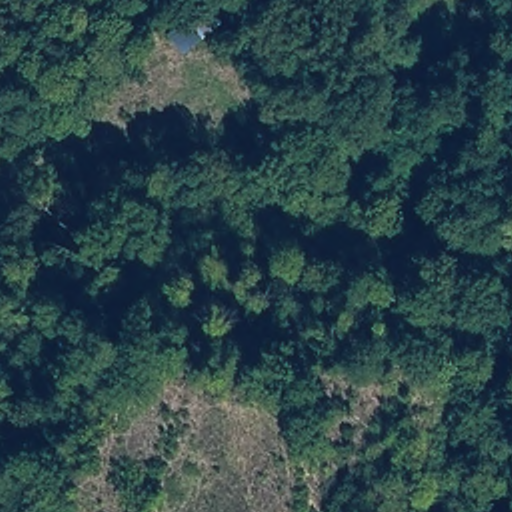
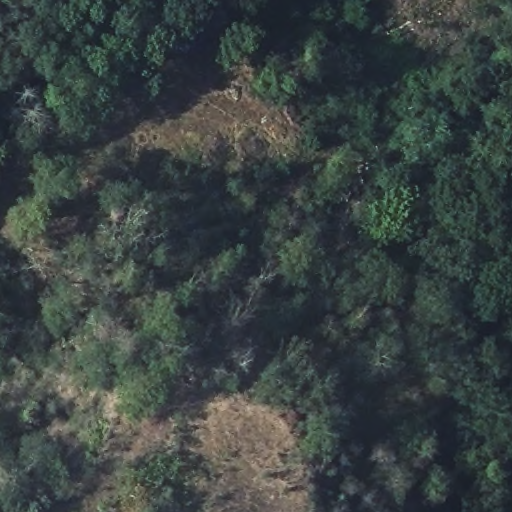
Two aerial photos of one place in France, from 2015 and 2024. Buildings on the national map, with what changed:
unchanged [(163,31),(197,7),(220,26),(184,54),(163,31)]

